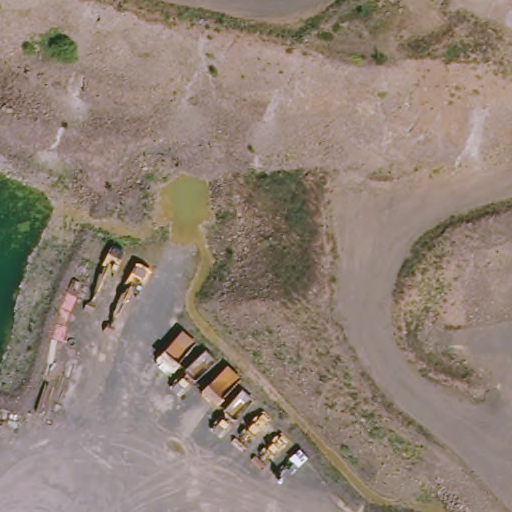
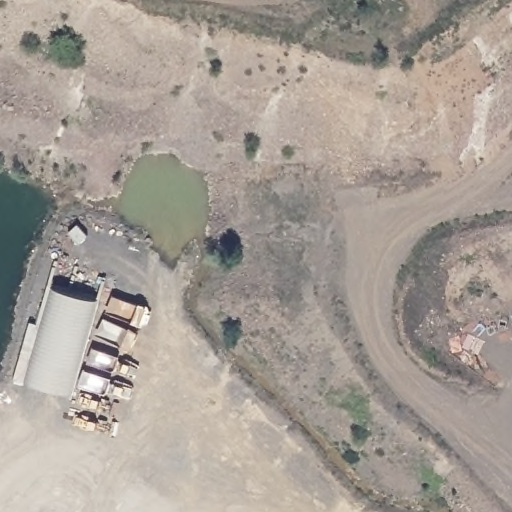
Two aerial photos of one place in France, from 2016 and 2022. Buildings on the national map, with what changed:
new [(72,394),(26,381),(53,287),(97,299),(72,394)]

